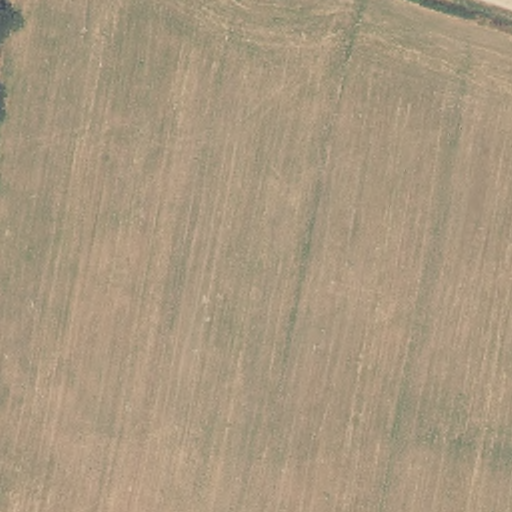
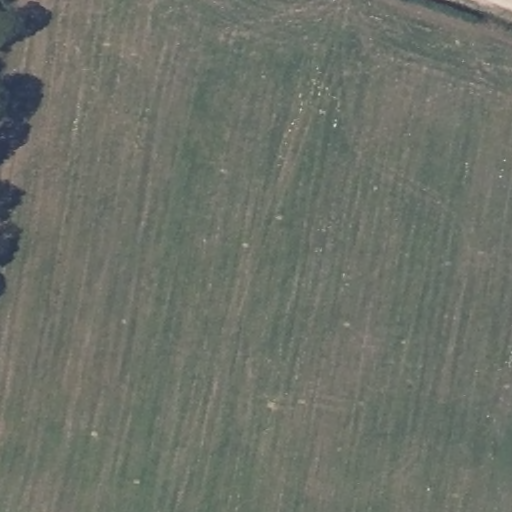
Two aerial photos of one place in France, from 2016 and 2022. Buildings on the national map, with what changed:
[]

